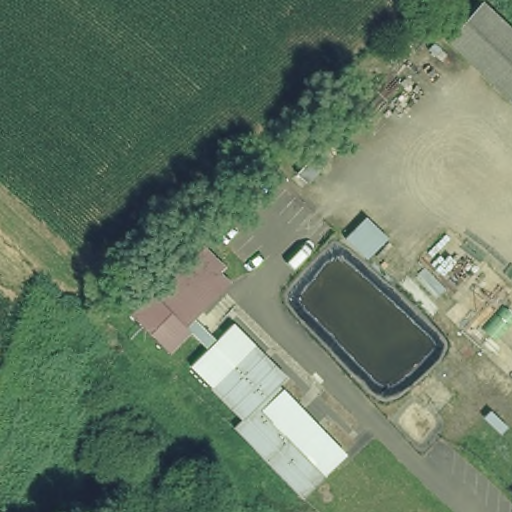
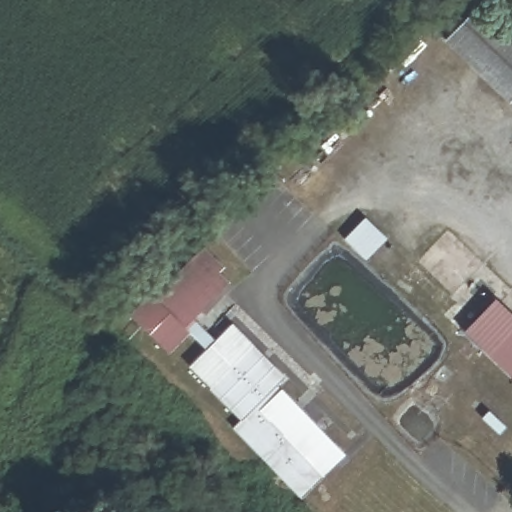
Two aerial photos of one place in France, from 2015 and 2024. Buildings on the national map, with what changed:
unchanged [(436,43),(473,0),(476,0),(512,35),(512,94),(501,106),(436,43)]
unchanged [(187,320),(193,324),(160,356),(117,315),(138,289),(147,297),(195,247),(231,281),(187,320)]
new [(494,297),(512,314),(512,377),(466,330),(494,297)]
unchanged [(296,500),(226,429),(235,419),(184,366),(224,323),(283,378),(274,387),(340,456),(296,500)]

